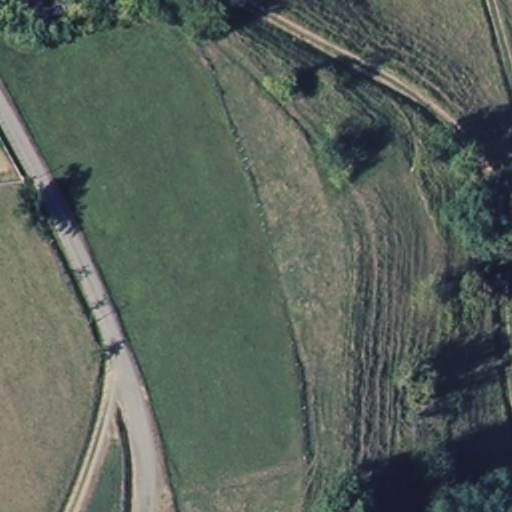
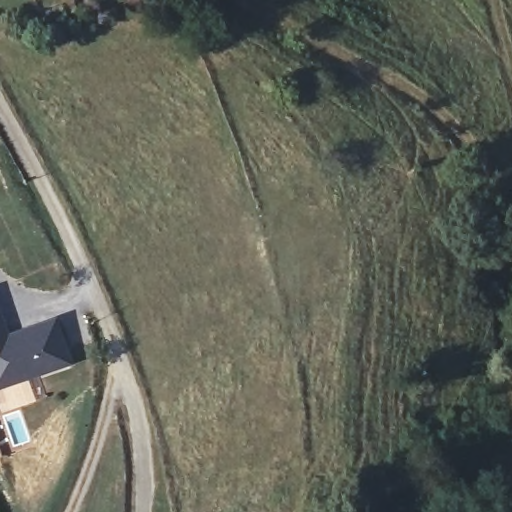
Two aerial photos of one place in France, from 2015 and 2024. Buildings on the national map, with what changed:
new [(53,318),(71,364),(0,387),(0,311),(8,332),(53,318)]

